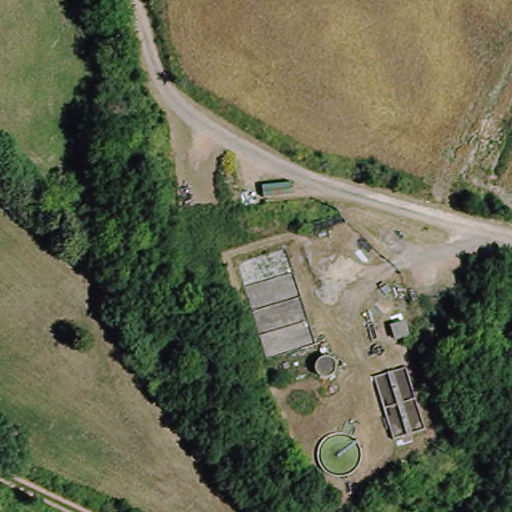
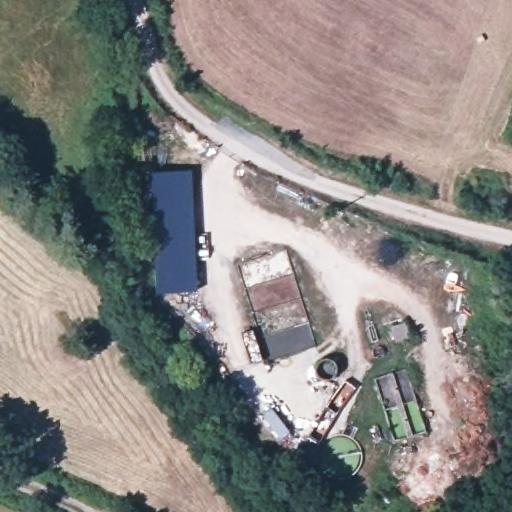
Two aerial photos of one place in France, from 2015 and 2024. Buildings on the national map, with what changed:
new [(149,171),(191,169),(196,290),(154,292),(149,171)]
unchanged [(261,202),(259,187),(289,186),(291,199),(261,202)]
unchanged [(411,339),(393,345),(388,329),(407,323),(411,339)]

